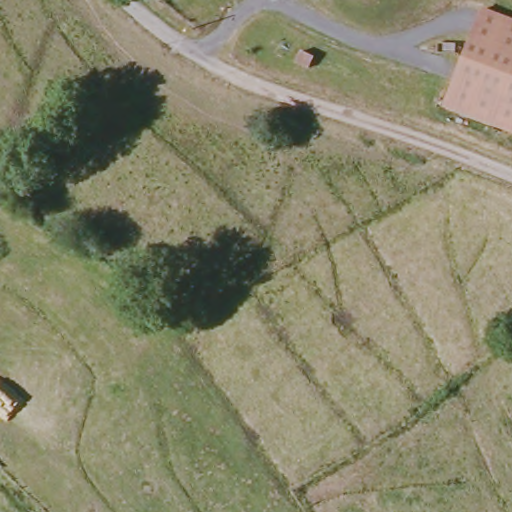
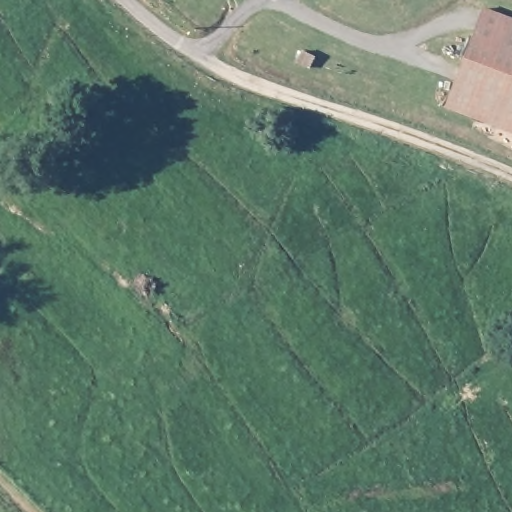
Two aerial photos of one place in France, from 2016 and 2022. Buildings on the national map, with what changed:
unchanged [(448,103),(489,5),(512,15),(512,129),(448,103)]

